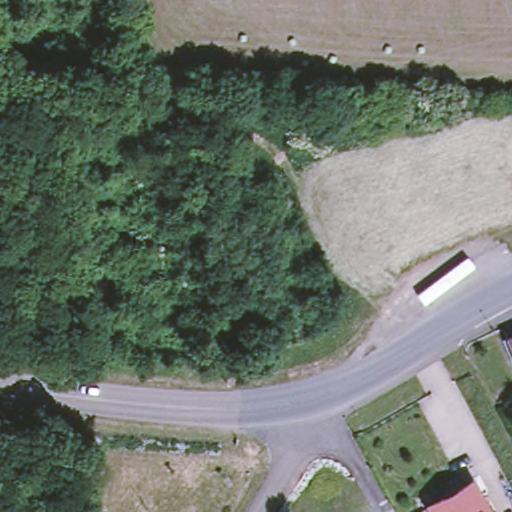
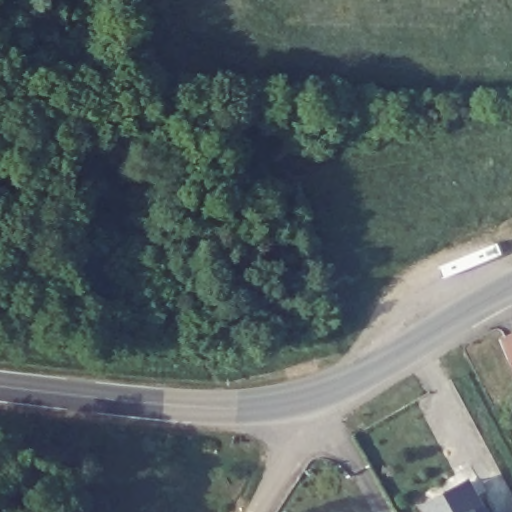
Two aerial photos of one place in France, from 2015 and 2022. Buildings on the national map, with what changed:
unchanged [(512,337),(512,352),(507,340),(512,337)]
unchanged [(430,512),(427,507),(471,482),(488,512),(430,512)]

